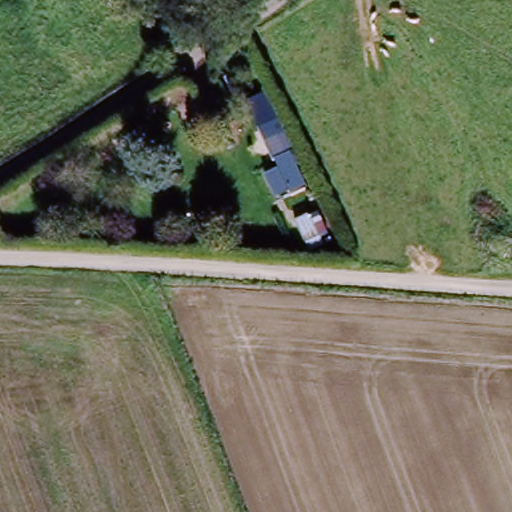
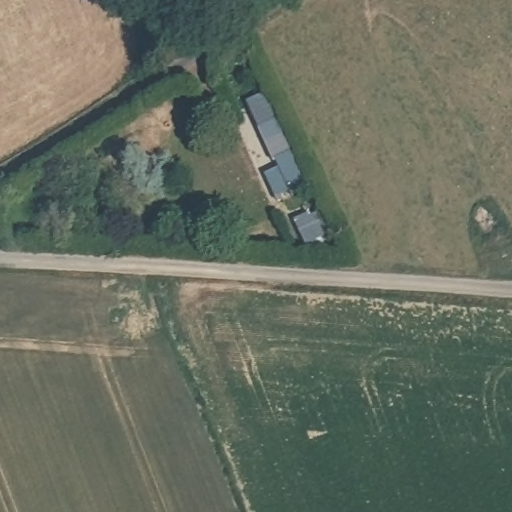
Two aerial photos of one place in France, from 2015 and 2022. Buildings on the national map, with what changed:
unchanged [(292,153),(308,183),(277,199),(265,177),(280,169),(276,161),(292,153)]
unchanged [(331,235),(321,240),(320,237),(306,245),(295,224),(307,214),(310,218),(320,214),(331,235)]

